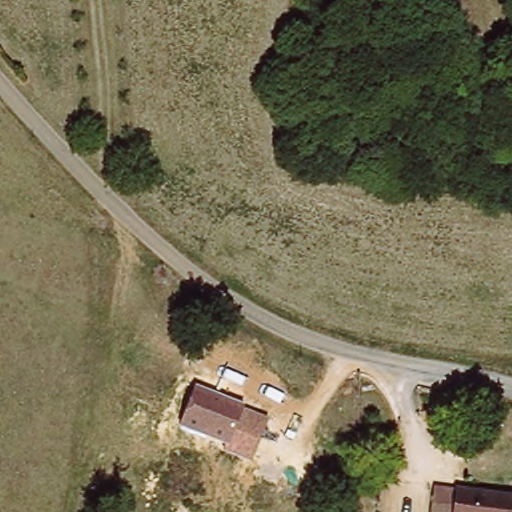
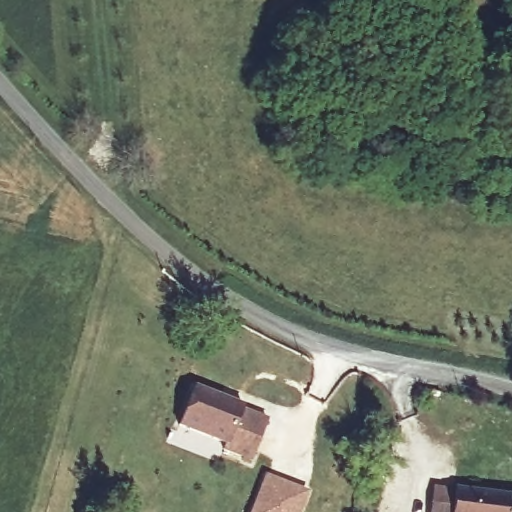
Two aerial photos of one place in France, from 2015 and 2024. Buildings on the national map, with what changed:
unchanged [(269,418),(252,464),(224,453),(227,446),(180,429),(195,388),(269,418)]
new [(267,475),(308,494),(300,512),(251,512),(267,475)]
unchanged [(433,486),(512,496),(512,512),(429,512),(433,486)]

